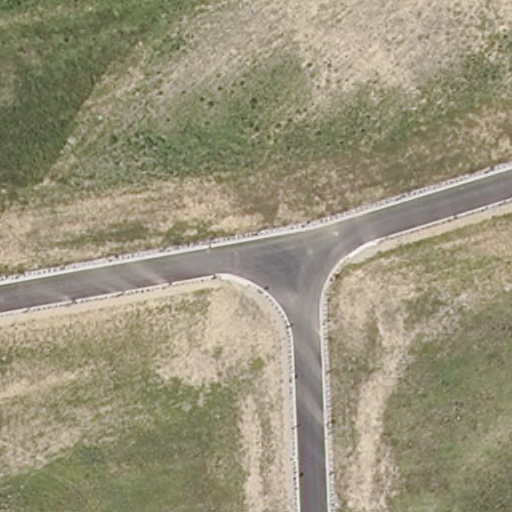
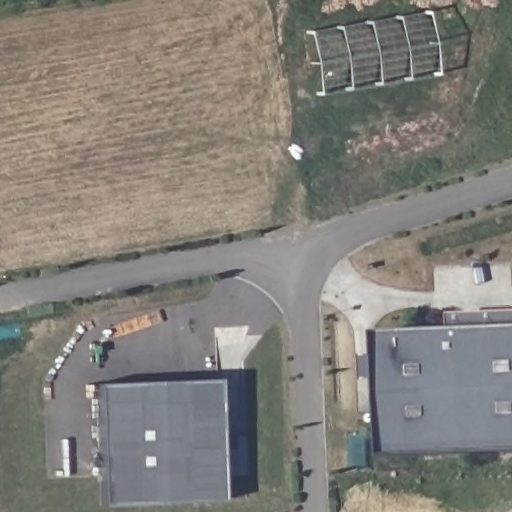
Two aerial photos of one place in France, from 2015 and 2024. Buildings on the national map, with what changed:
new [(430,14),(441,77),(322,96),(312,33),(430,14)]
new [(379,381),(365,382),(365,353),(380,353),(379,331),(452,328),(451,313),(512,310),(512,450),(382,455),(379,381)]
new [(221,375),(226,496),(104,501),(100,380),(221,375)]

